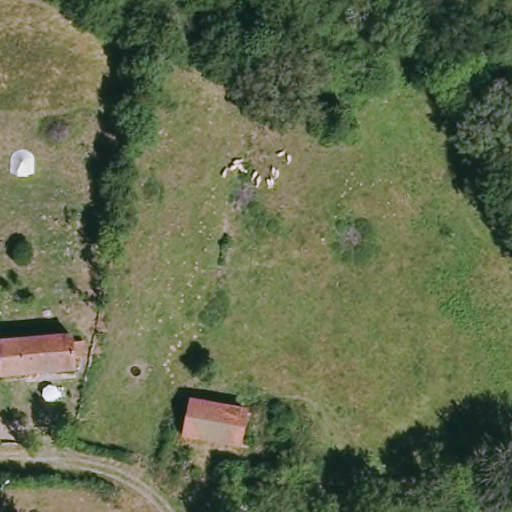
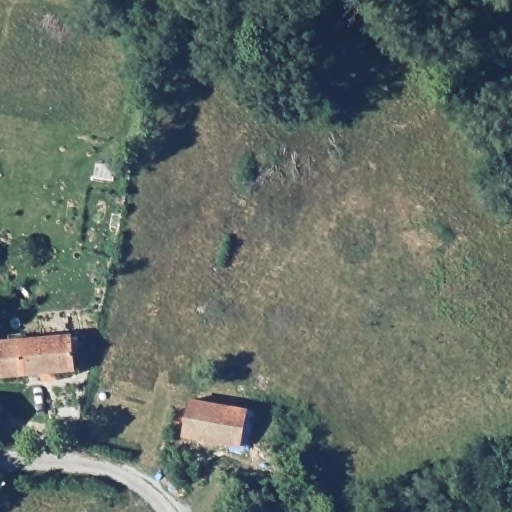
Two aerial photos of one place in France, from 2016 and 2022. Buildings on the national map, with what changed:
unchanged [(83,346),(85,360),(73,363),(75,373),(2,384),(0,370),(0,343),(69,333),(71,347),(83,346)]
unchanged [(192,402),(242,406),(237,447),(185,444),(192,402)]

